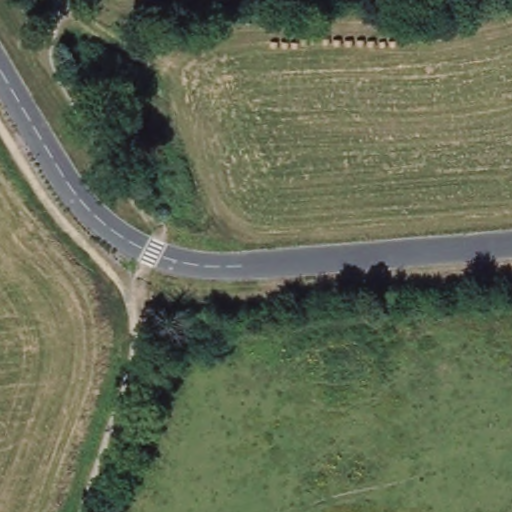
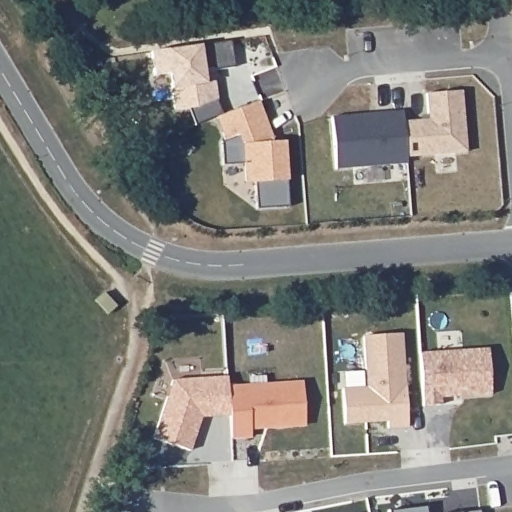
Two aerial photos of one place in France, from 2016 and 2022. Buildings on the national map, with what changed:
new [(220,117),(199,125),(192,109),(178,111),(173,74),(158,76),(154,51),(235,40),(239,68),(219,70),(215,68),(207,69),(209,83),(218,81),(221,99),(227,115),(262,101),(267,116),(277,142),(287,141),(293,207),(260,210),(258,184),(248,184),(246,165),(226,166),(224,142),(228,140),(225,133),(220,117)]
new [(432,120),(430,94),(465,91),(470,152),(410,156),(407,121),(432,120)]
new [(406,111),(407,121),(410,156),(410,163),(339,169),(335,117),(406,111)]
new [(347,424),(345,389),(369,387),(366,336),(404,334),(410,427),(391,428),(390,421),(369,423),(347,424)]
new [(491,349),(494,395),(443,398),(444,405),(426,406),(422,354),(491,349)]
new [(193,451),(156,439),(175,380),(230,377),(231,388),(233,416),(213,417),(204,417),(193,451)]
new [(306,383),(308,425),(253,429),(254,437),(234,438),(233,416),(231,388),(306,383)]
new [(429,506),(430,512),(391,512),(391,511),(429,506)]
new [(484,510),(484,512),(462,512),(484,510)]

